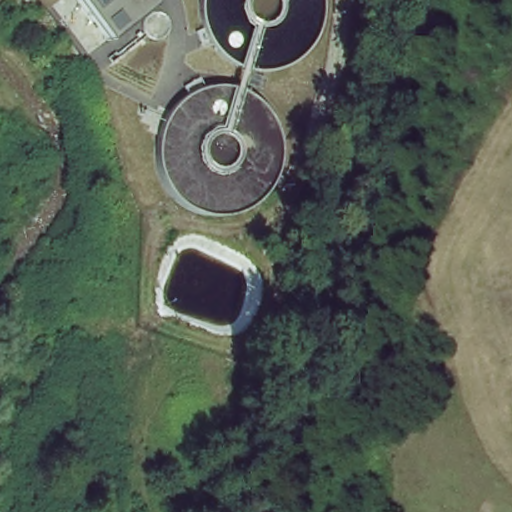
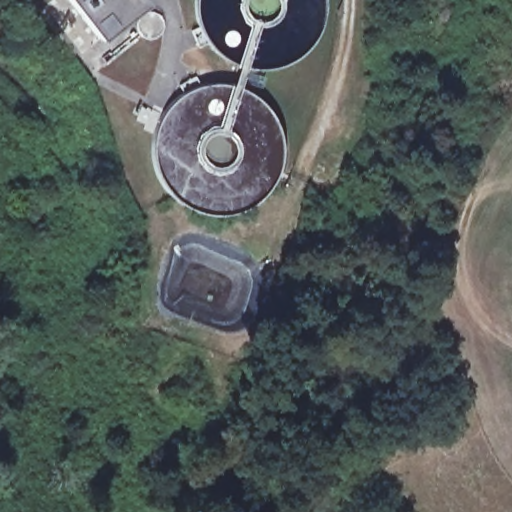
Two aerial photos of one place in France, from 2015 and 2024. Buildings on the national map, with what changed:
unchanged [(69,0),(144,0),(146,3),(99,40),(69,0)]

